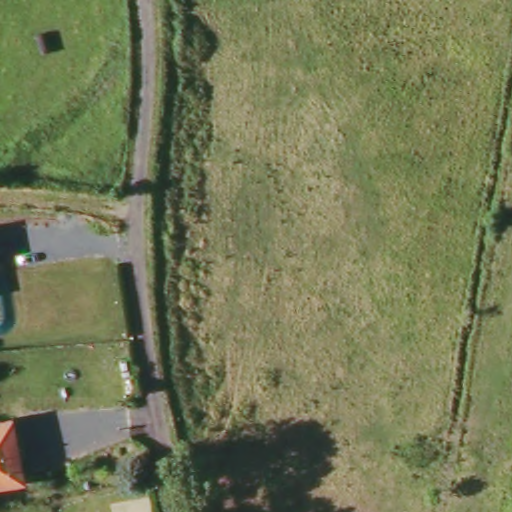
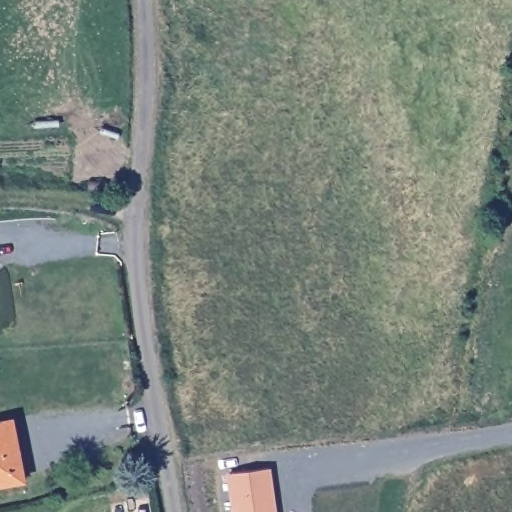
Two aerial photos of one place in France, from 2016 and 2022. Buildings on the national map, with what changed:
unchanged [(8,421),(20,481),(0,485),(0,423),(8,421)]
new [(270,468),(276,512),(231,512),(225,474),(270,468)]

